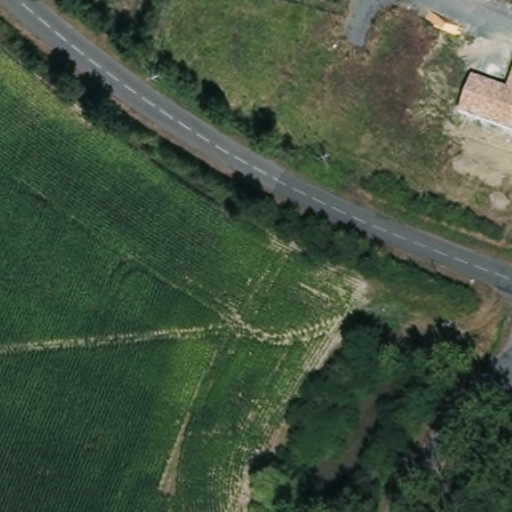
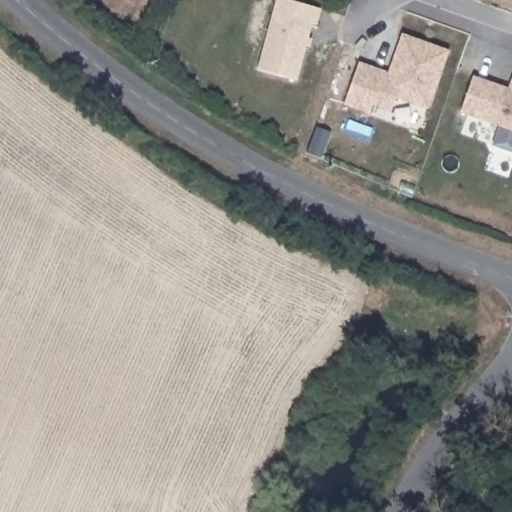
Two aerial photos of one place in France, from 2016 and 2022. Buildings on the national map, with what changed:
new [(276,0),(286,0),(320,10),(316,25),(311,24),(295,81),(257,70),(276,0)]
new [(387,73),(394,55),(401,34),(448,51),(427,110),(395,98),(390,112),(371,106),(368,115),(342,106),(358,62),(387,73)]
unchanged [(508,87),(512,77),(512,130),(460,112),(473,76),(508,87)]

